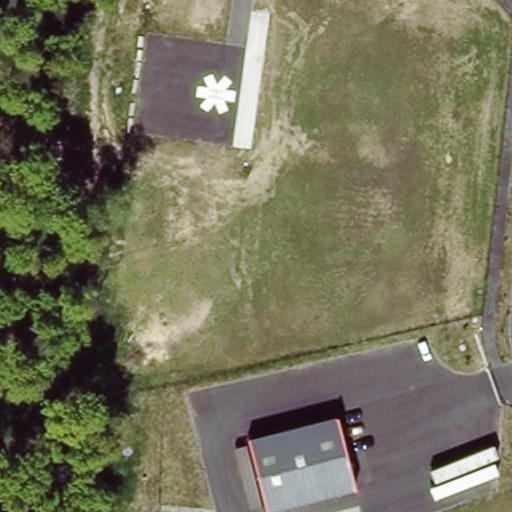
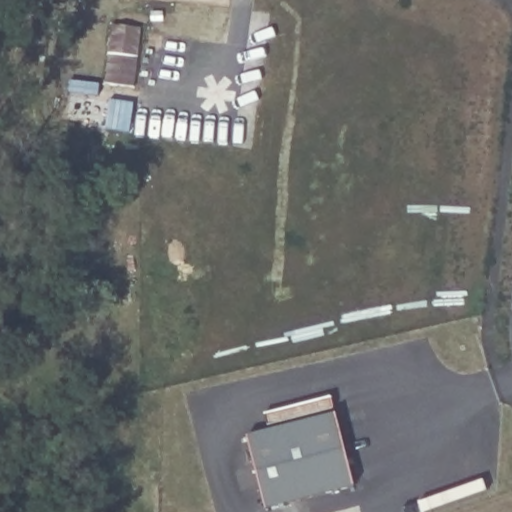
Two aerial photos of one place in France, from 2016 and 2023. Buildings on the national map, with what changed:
new [(113,25),(144,28),(137,89),(106,85),(113,25)]
unchanged [(246,437),(336,415),(353,486),(266,512),(246,437)]

